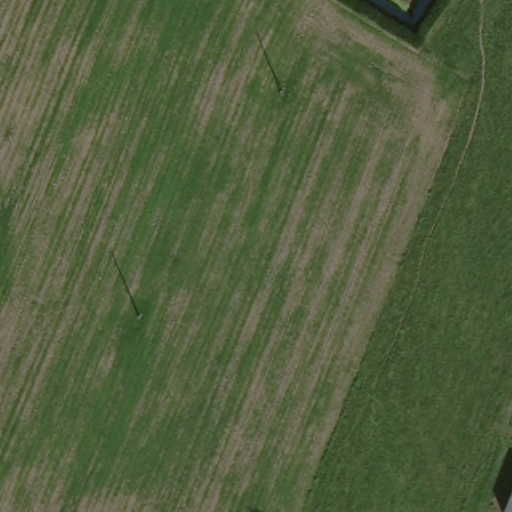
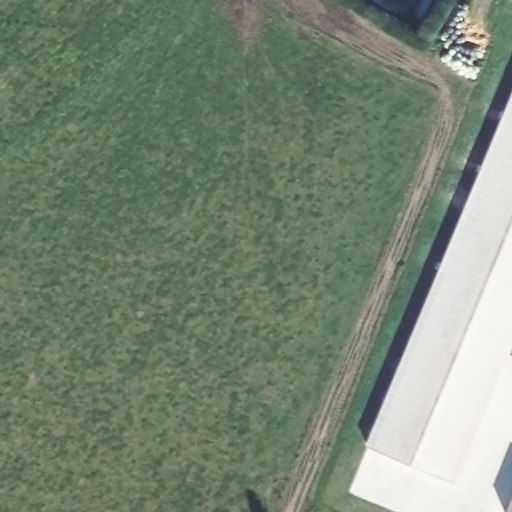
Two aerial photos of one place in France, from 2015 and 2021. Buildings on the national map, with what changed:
new [(512,88),(512,344),(455,481),(364,443),(512,88)]

